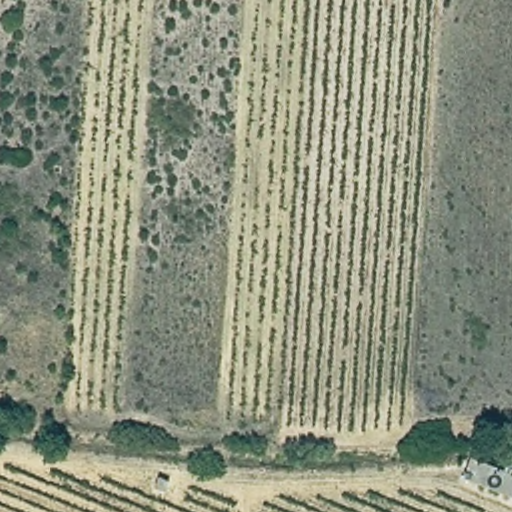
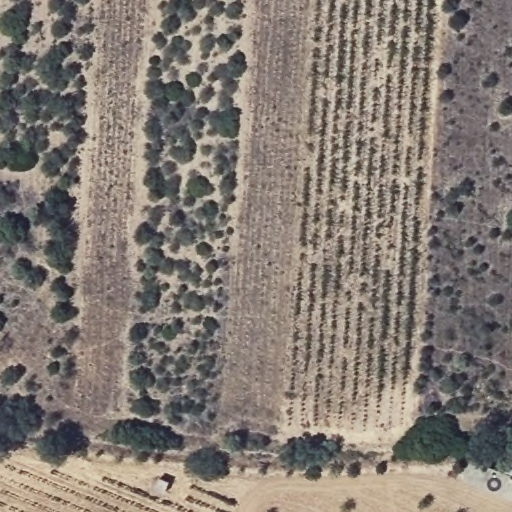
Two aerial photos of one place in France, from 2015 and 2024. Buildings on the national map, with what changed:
unchanged [(510,457),(512,458),(512,500),(463,481),(472,458),(504,473),(510,457)]

